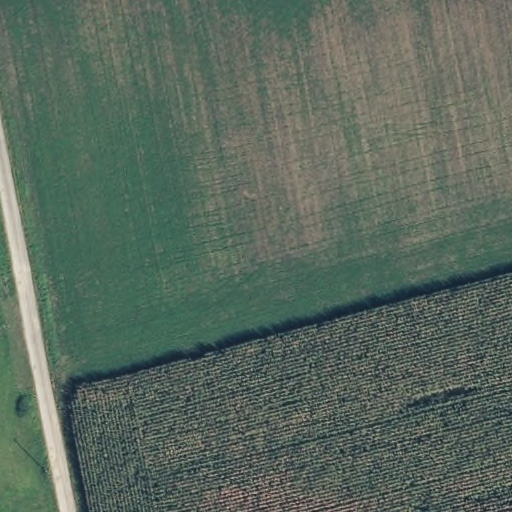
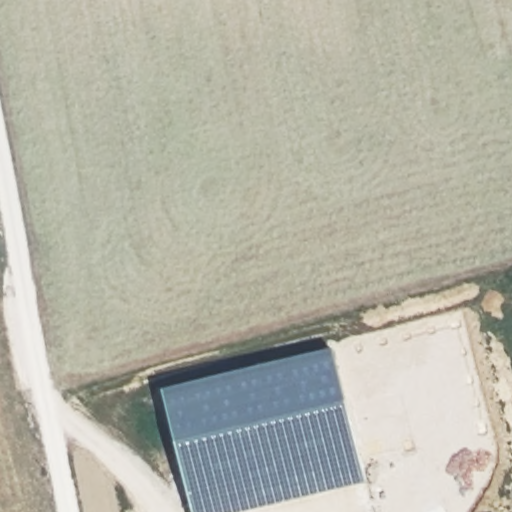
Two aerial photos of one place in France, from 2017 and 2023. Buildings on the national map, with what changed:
new [(248,512),(192,512),(163,392),(333,351),(367,484),(248,512)]

